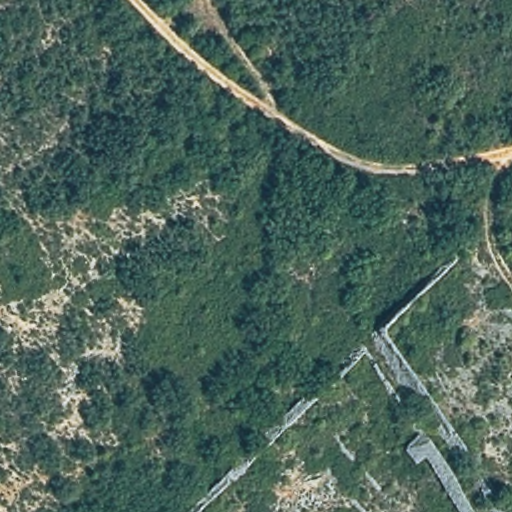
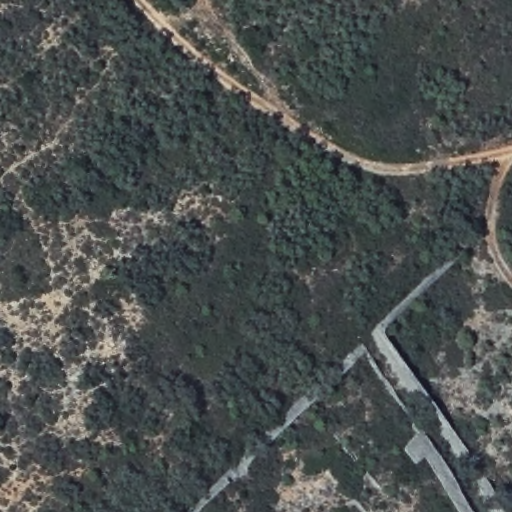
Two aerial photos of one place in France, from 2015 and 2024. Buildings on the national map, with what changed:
unchanged [(458,512),(422,456),(412,462),(399,445),(419,429),(474,512),(458,512)]

